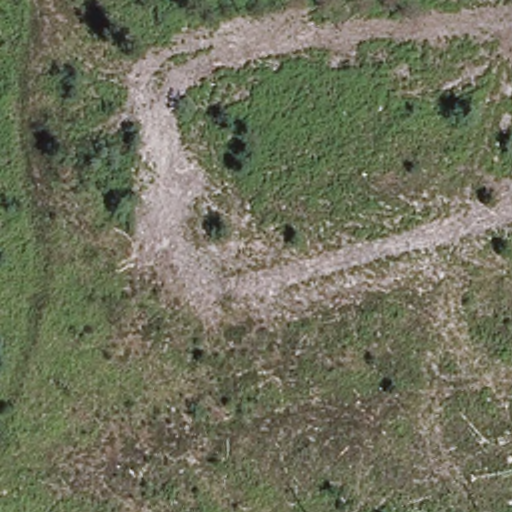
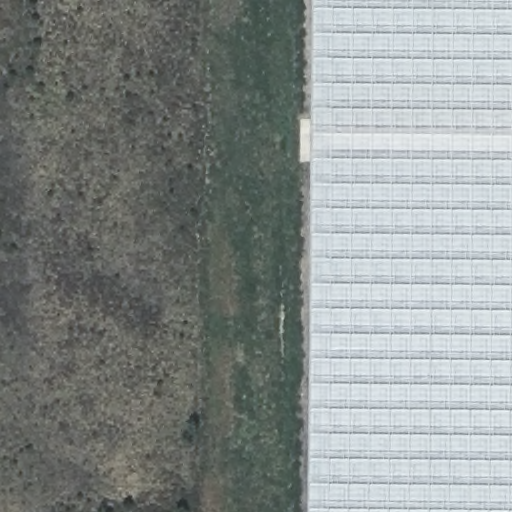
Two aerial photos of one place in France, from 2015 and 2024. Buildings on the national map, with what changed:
new [(317,512),(323,0),(512,0),(512,512),(317,512)]

